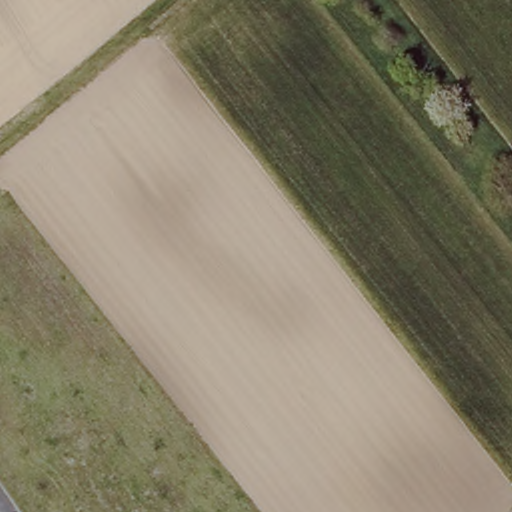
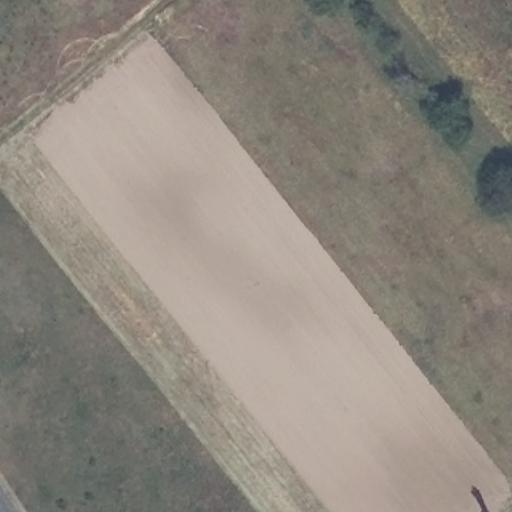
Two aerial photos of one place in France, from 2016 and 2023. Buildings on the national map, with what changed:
[]

